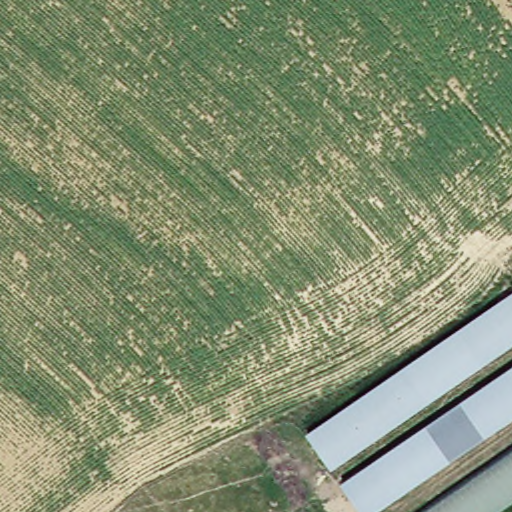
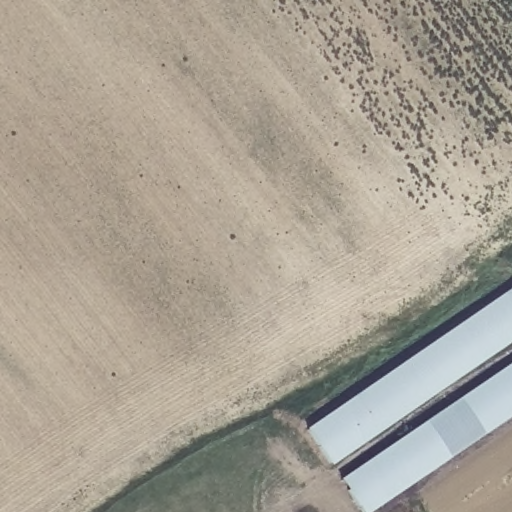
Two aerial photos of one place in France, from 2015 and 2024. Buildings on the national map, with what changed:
unchanged [(512,292),(512,344),(335,465),(312,427),(512,292)]
unchanged [(512,366),(512,419),(374,512),(368,512),(348,478),(512,366)]
demolished [(497,512),(408,512),(512,440),(512,502),(497,512)]

